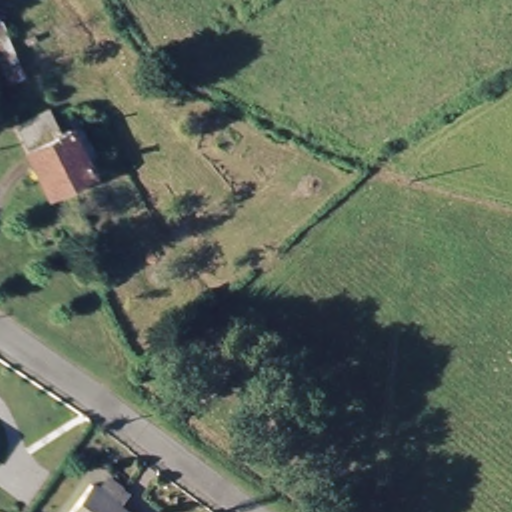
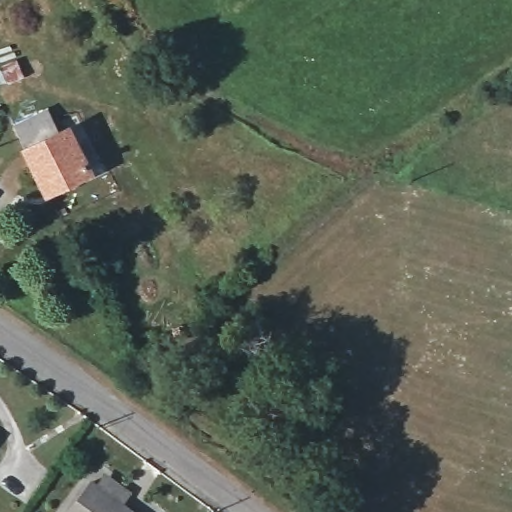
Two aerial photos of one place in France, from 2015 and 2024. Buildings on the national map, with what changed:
unchanged [(16,64),(25,84),(10,91),(0,72),(16,64)]
unchanged [(24,155),(31,150),(20,128),(52,110),(63,135),(71,130),(95,174),(46,197),(24,155)]
unchanged [(91,491),(100,496),(112,478),(136,497),(125,512),(76,512),(91,491)]

